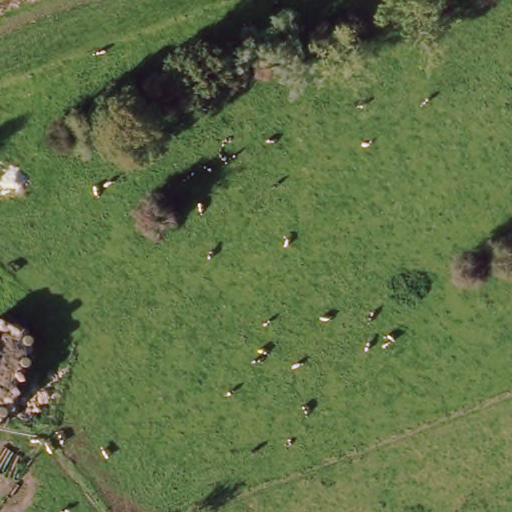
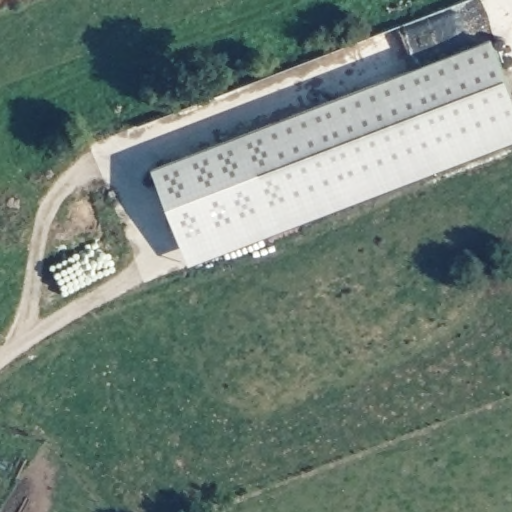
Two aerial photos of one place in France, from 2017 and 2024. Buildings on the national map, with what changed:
new [(489,40),(512,99),(512,141),(188,265),(151,170),(489,40)]

